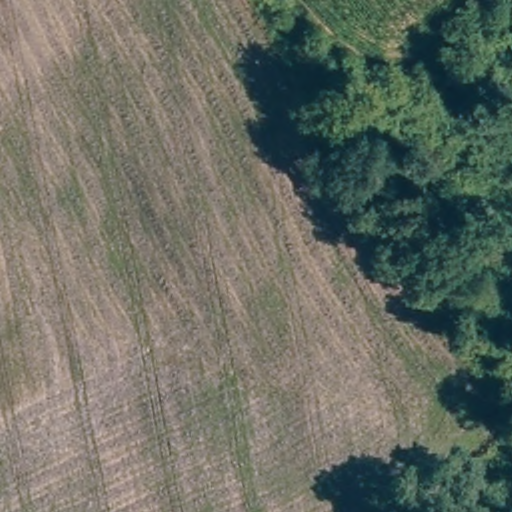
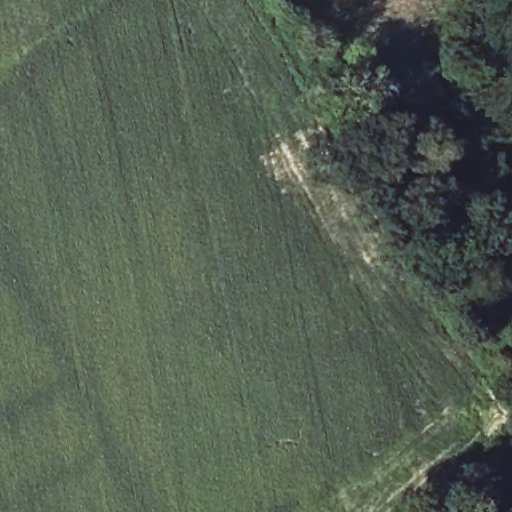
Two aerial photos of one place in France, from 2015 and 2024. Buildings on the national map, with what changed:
[]

